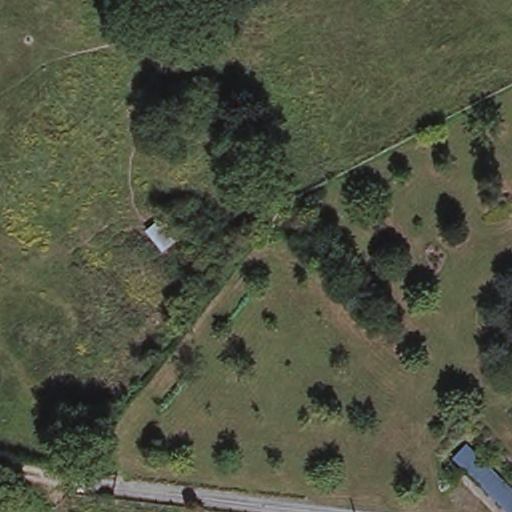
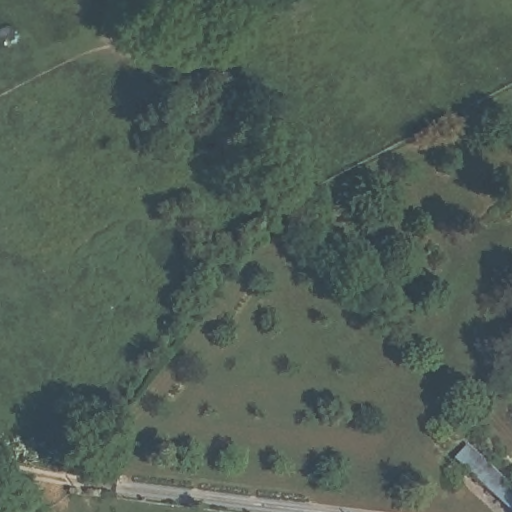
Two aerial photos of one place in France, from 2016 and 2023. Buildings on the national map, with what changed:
unchanged [(159,215),(178,239),(164,252),(144,228),(159,215)]
unchanged [(512,494),(512,512),(503,512),(455,454),(470,442),(512,494)]

